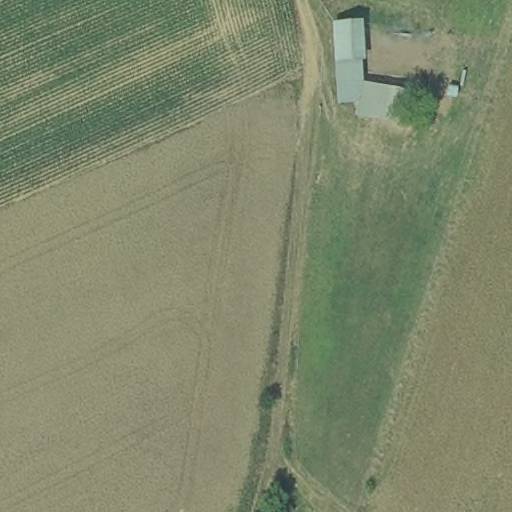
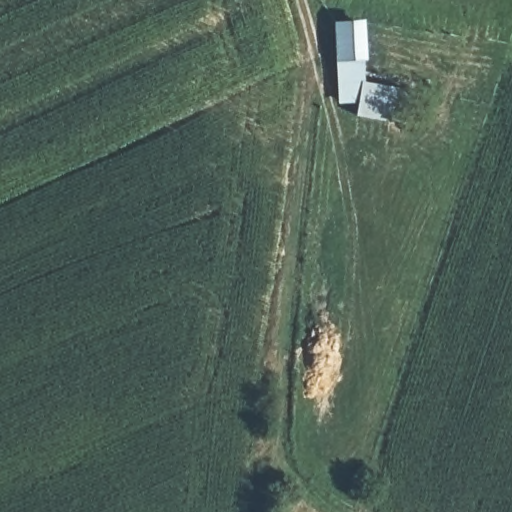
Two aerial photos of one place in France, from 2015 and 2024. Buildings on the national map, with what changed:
unchanged [(365,81),(408,88),(402,123),(356,117),(356,103),(336,102),(332,22),(363,18),(365,81)]

